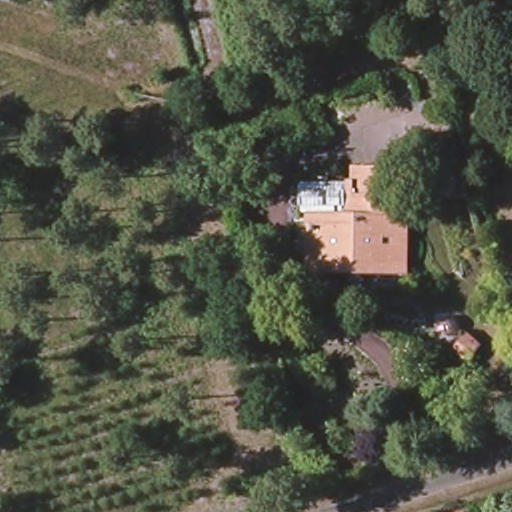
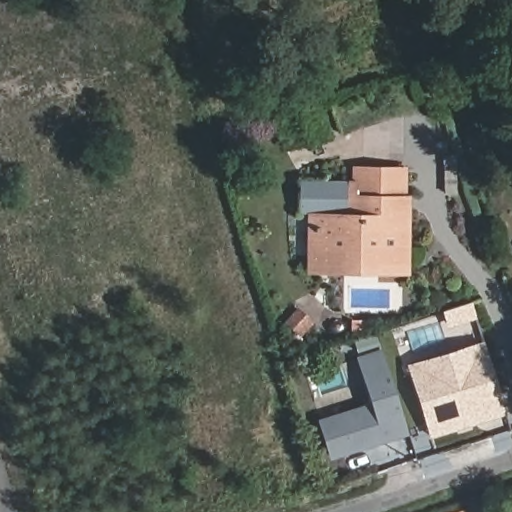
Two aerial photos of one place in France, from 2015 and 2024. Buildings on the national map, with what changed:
unchanged [(335,130),(299,143),(288,112),(325,100),(335,130)]
unchanged [(406,297),(381,297),(381,282),(381,268),(345,268),(345,275),(317,275),(317,222),(304,222),(305,191),(351,191),(351,207),(357,207),(357,177),(407,178),(406,297)]
new [(405,364),(482,341),(505,412),(429,436),(405,364)]
new [(330,460),(318,423),(372,406),(357,359),(381,352),(407,435),(330,460)]
new [(466,512),(461,512),(465,510),(466,512)]

